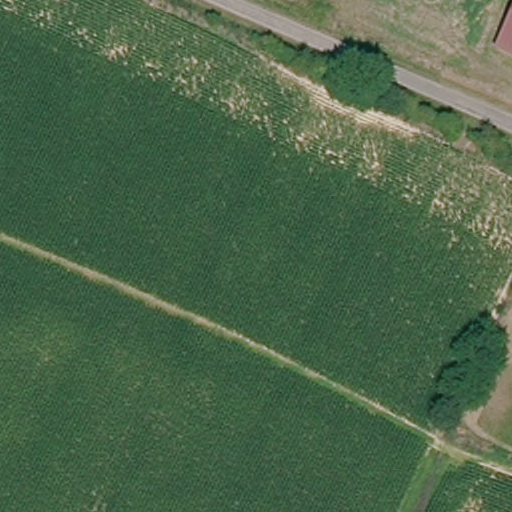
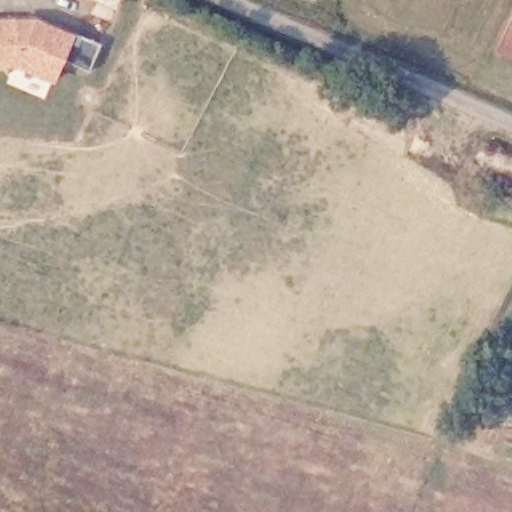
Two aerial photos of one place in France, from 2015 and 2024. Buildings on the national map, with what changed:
new [(34,18),(75,35),(101,45),(89,74),(64,60),(53,85),(17,69),(0,69),(0,19),(15,19),(34,18)]
unchanged [(496,51),(512,20),(512,60),(496,51)]

